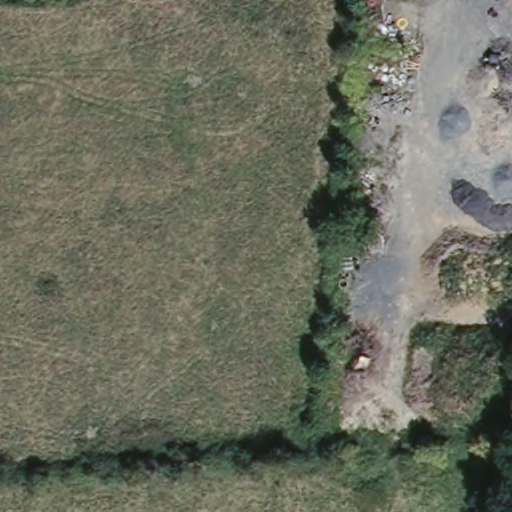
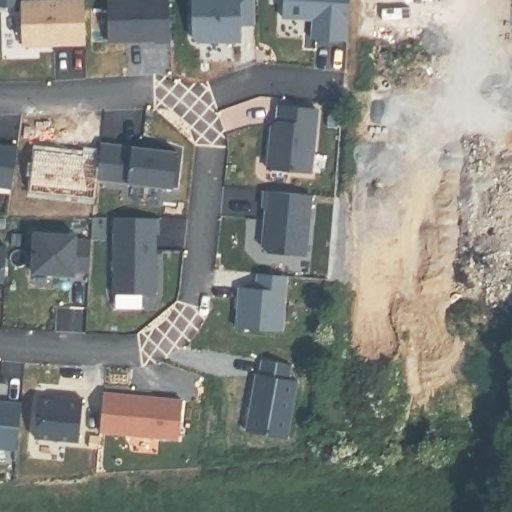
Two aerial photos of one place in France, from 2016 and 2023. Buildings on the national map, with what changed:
new [(245,21),(245,42),(194,45),(193,0),(261,0),(261,20),(245,21)]
new [(314,39),(315,19),(285,15),(287,0),(351,0),(349,41),(314,39)]
new [(83,1),(84,43),(23,44),(21,3),(83,1)]
new [(168,1),(169,44),(108,43),(109,1),(168,1)]
new [(312,174),(267,169),(272,124),(278,124),(280,102),(318,108),(312,174)]
new [(104,142),(179,152),(174,189),(99,179),(104,142)]
new [(11,189),(0,187),(0,144),(18,146),(11,189)]
new [(311,194),(308,255),(263,251),(267,191),(311,194)]
new [(117,216),(160,217),(160,233),(156,232),(155,292),(115,292),(117,216)]
new [(76,235),(77,240),(93,240),(89,271),(75,270),(75,275),(33,273),(34,233),(76,235)]
new [(1,287),(0,287),(0,253),(3,254),(1,287)]
new [(279,333),(234,334),(235,294),(252,294),(252,278),(279,277),(279,333)]
new [(104,393),(184,397),(183,436),(102,432),(104,393)]
new [(64,401),(64,396),(83,397),(79,444),(34,440),(38,397),(64,401)]
new [(18,448),(0,447),(0,401),(21,402),(18,448)]

